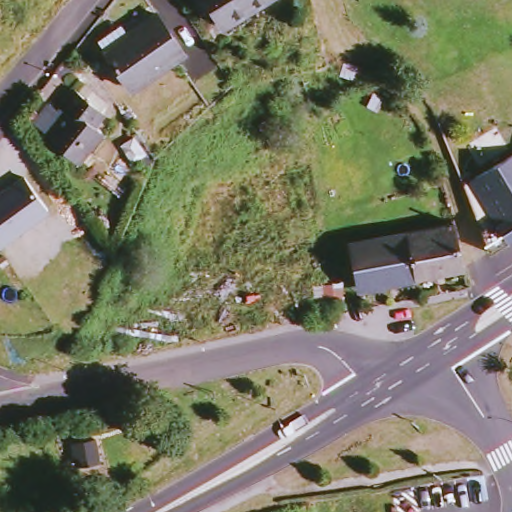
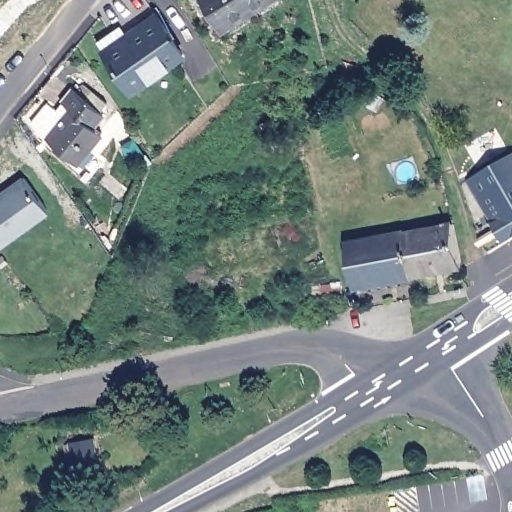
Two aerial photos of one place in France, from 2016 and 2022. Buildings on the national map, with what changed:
unchanged [(215,23),(205,0),(262,0),(215,23)]
unchanged [(181,53),(125,89),(93,39),(118,23),(125,32),(157,12),(181,53)]
unchanged [(107,120),(97,132),(105,139),(80,168),(48,141),(72,115),(63,107),(74,94),(107,120)]
unchanged [(512,238),(490,252),(472,205),(462,184),(472,179),(512,154),(512,238)]
unchanged [(19,175),(42,209),(0,238),(0,188),(19,175)]
unchanged [(463,267),(359,287),(350,242),(454,222),(463,267)]

